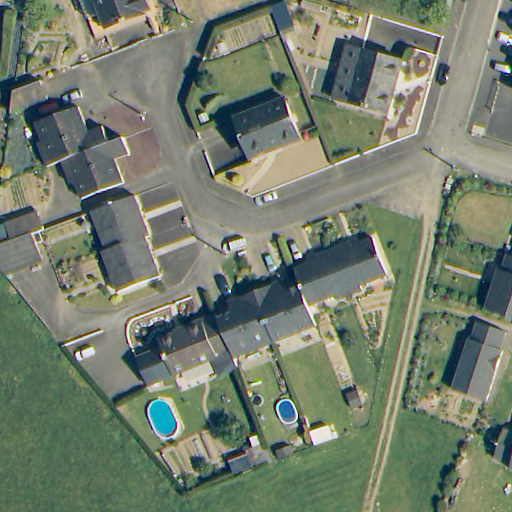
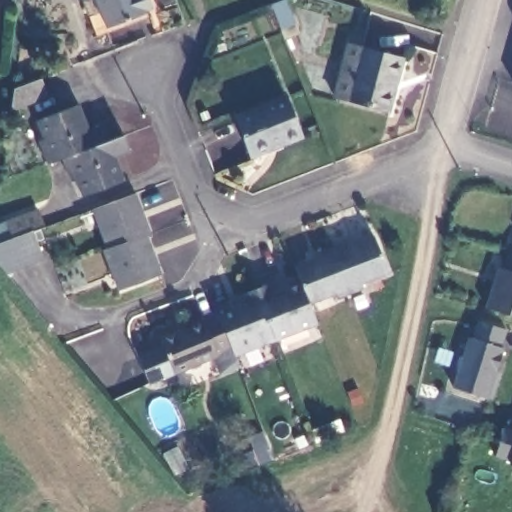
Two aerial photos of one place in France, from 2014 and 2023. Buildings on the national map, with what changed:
unchanged [(165,6),(154,10),(153,4),(111,17),(112,21),(100,24),(93,0),(163,0),(165,6)]
unchanged [(269,5),(283,0),(285,0),(294,27),(279,33),(269,5)]
unchanged [(411,54),(395,108),(339,92),(356,38),(411,54)]
unchanged [(28,82),(39,78),(47,97),(10,112),(13,88),(21,85),(28,82)]
unchanged [(253,152),(238,111),(288,91),(303,132),(253,152)]
unchanged [(79,118),(81,125),(101,118),(108,135),(123,130),(129,145),(107,153),(109,157),(115,156),(123,174),(81,190),(75,173),(71,174),(63,152),(48,157),(39,135),(44,132),(37,114),(76,98),(83,117),(79,118)]
unchanged [(135,192),(151,233),(147,235),(161,271),(120,287),(104,246),(108,245),(93,208),(135,192)]
unchanged [(0,259),(0,238),(3,237),(14,232),(7,217),(38,205),(44,221),(33,225),(43,250),(5,265),(0,259)]
unchanged [(314,257),(320,254),(317,245),(351,232),(355,241),(361,238),(362,233),(375,228),(389,265),(362,276),(364,281),(340,291),(338,286),(311,297),(304,279),(303,275),(296,259),(309,255),(314,257)]
unchanged [(509,247),(512,248),(512,310),(487,302),(500,261),(504,263),(509,247)]
unchanged [(230,294),(241,289),(274,275),(285,270),(289,280),(303,275),(304,279),(311,297),(318,315),(236,349),(219,310),(234,303),(230,294)]
unchanged [(232,343),(178,371),(161,337),(178,329),(177,326),(185,322),(217,307),(232,343)]
unchanged [(505,349),(489,399),(453,387),(469,337),(472,338),(476,325),(478,320),(509,329),(508,332),(503,348),(505,349)]
unchanged [(496,457),(507,427),(512,429),(512,462),(496,457)]
unchanged [(259,462),(254,451),(267,446),(270,457),(259,462)]

